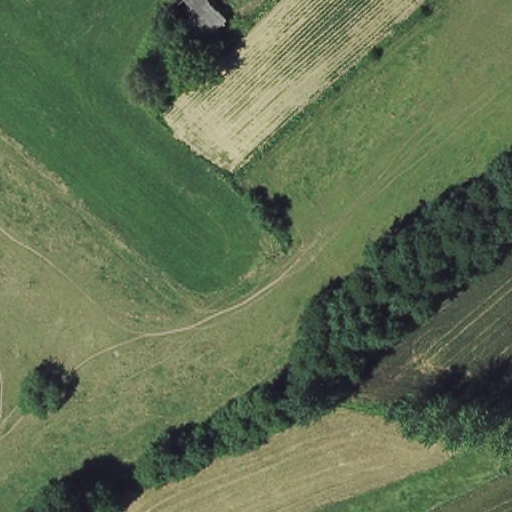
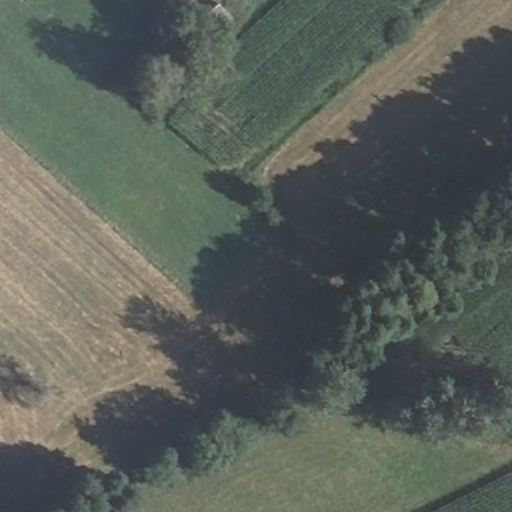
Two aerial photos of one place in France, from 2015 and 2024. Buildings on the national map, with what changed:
unchanged [(174,2),(176,0),(216,0),(230,18),(199,33),(174,2)]

